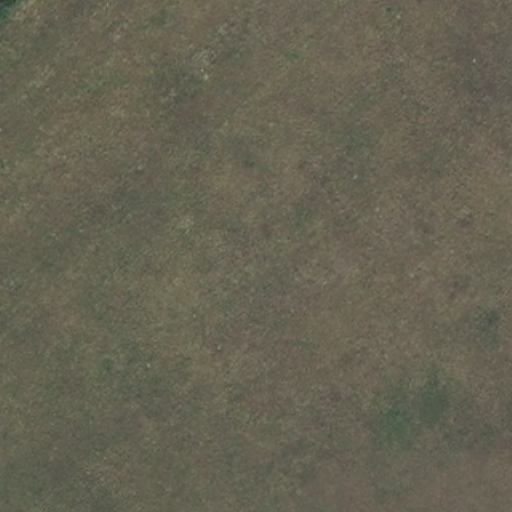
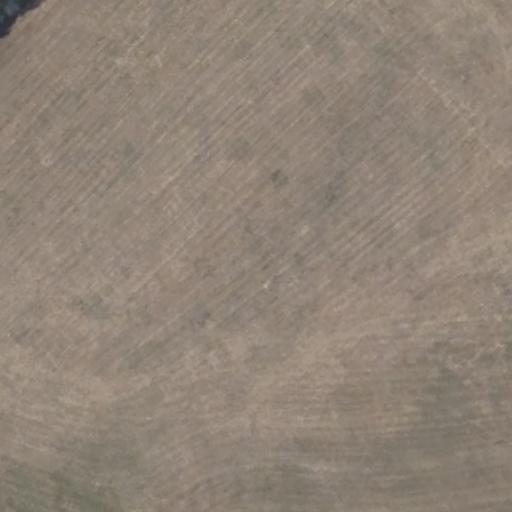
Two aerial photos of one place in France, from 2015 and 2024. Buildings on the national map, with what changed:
[]

